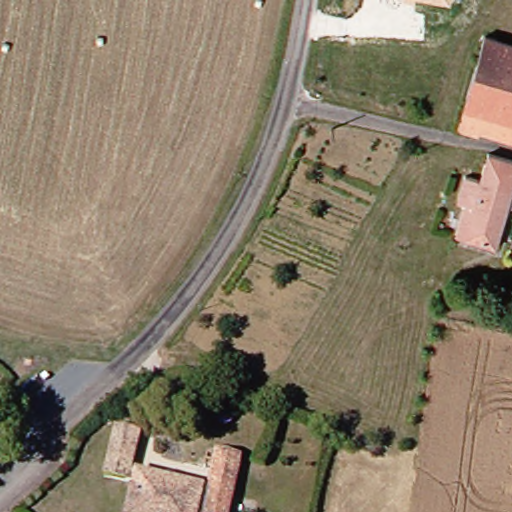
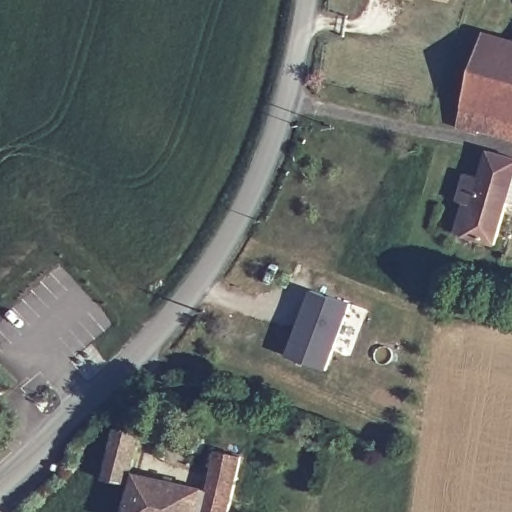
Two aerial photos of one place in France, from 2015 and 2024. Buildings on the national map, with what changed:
unchanged [(433,0),(452,0),(451,4),(433,0)]
unchanged [(512,140),(463,127),(495,30),(512,36),(512,140)]
unchanged [(512,207),(508,206),(498,241),(461,231),(469,204),(460,202),(468,175),(481,178),(489,155),(512,160),(512,207)]
new [(312,290),(350,304),(326,368),(289,355),(312,290)]
unchanged [(218,455),(248,461),(235,512),(130,512),(135,487),(109,481),(120,435),(147,442),(140,473),(211,488),(218,455)]

